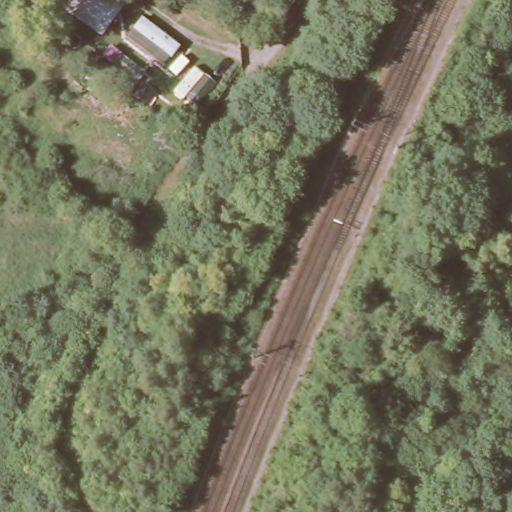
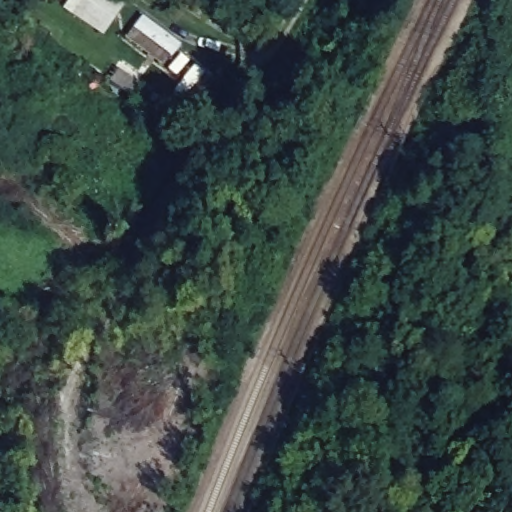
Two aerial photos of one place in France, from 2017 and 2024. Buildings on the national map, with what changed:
unchanged [(90,0),(93,2),(95,0),(110,0),(117,5),(98,32),(60,5),(63,0),(90,0)]
unchanged [(125,39),(141,16),(179,45),(161,66),(125,39)]

